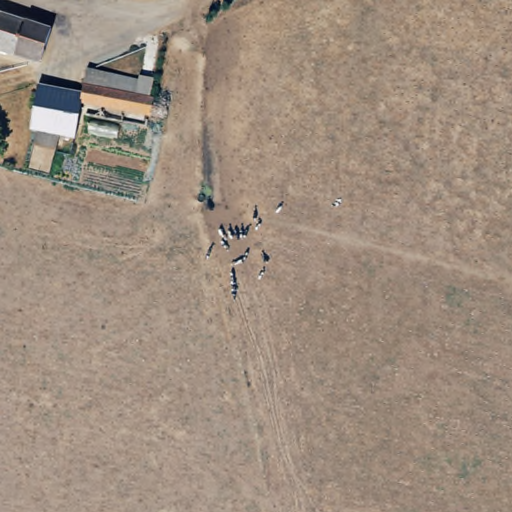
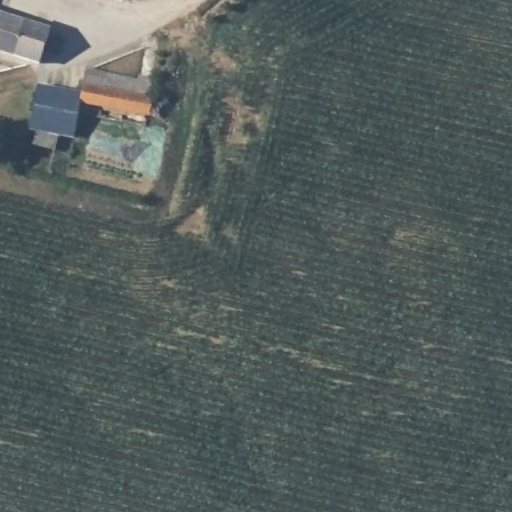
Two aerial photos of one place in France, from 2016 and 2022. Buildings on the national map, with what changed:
unchanged [(44,68),(0,54),(0,12),(55,29),(44,68)]
unchanged [(45,83),(49,84),(80,88),(89,89),(92,64),(147,73),(147,69),(161,71),(159,90),(161,90),(159,109),(89,99),(87,105),(83,134),(37,127),(42,94),(45,83)]

